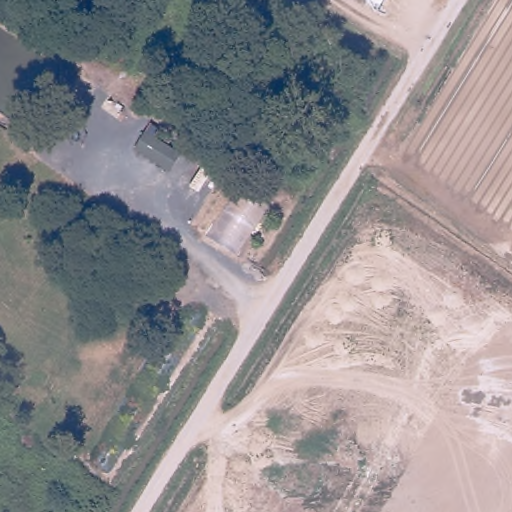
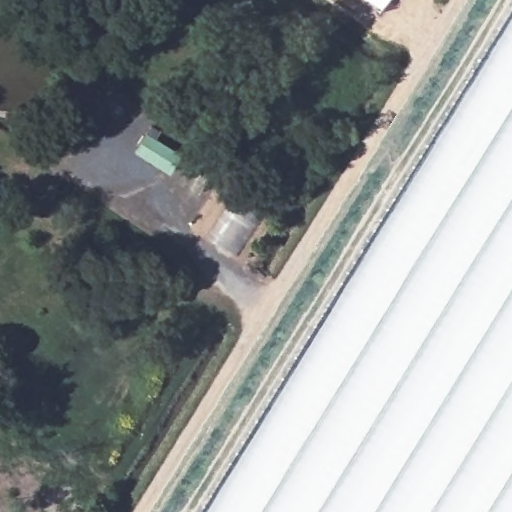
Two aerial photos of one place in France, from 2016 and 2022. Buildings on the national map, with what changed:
unchanged [(381,0),(378,4),(373,0),(381,0)]
new [(512,27),(512,512),(214,512),(512,27)]
unchanged [(181,156),(169,173),(133,150),(146,133),(181,156)]

